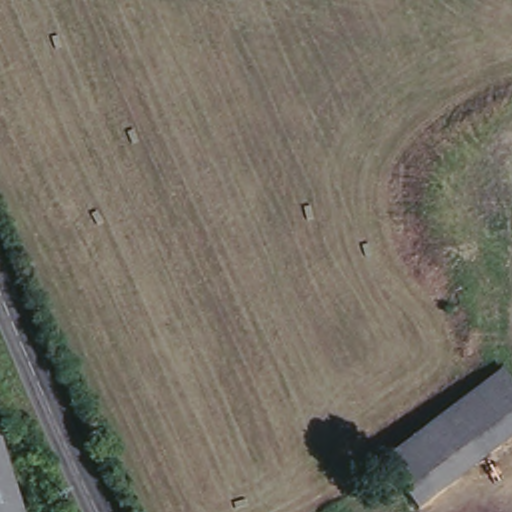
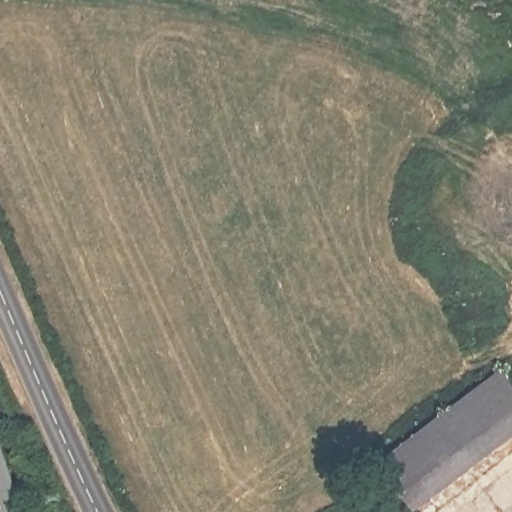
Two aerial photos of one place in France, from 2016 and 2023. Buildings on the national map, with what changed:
unchanged [(507,373),(512,380),(512,437),(416,504),(385,457),(507,373)]
unchanged [(0,512),(0,453),(20,512),(0,512)]

